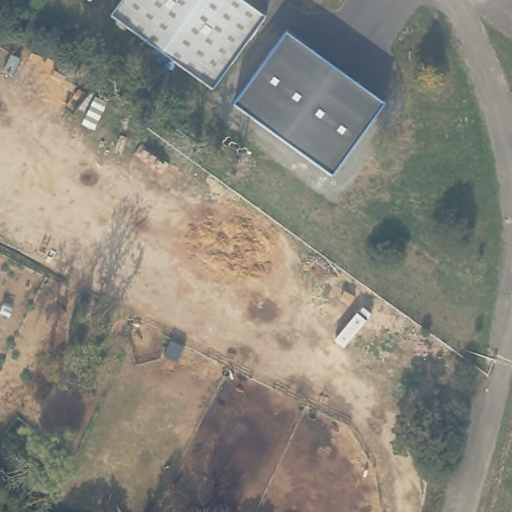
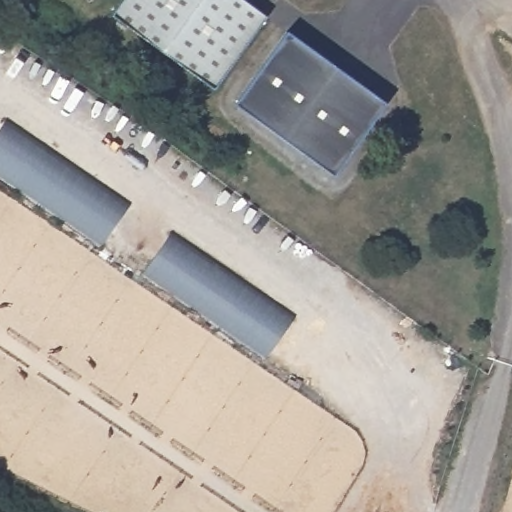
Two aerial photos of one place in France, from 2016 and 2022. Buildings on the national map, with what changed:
unchanged [(124,0),(243,0),(267,17),(215,91),(112,17),(124,0)]
unchanged [(384,101),(333,176),(234,102),(288,29),(384,101)]
new [(0,130),(8,120),(130,205),(102,243),(0,173),(0,130)]
new [(173,231),(296,315),(268,357),(145,269),(173,231)]

